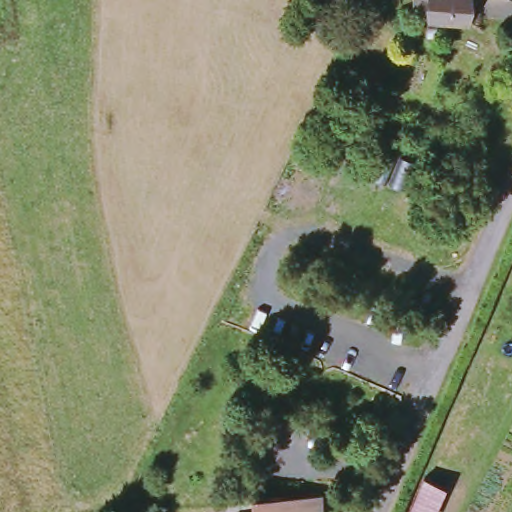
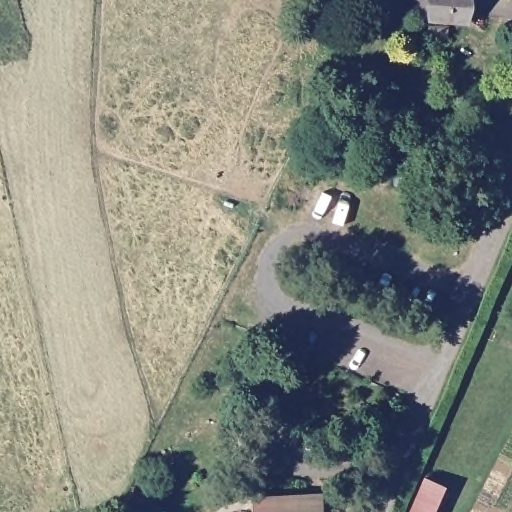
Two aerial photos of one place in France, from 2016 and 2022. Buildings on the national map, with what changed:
unchanged [(412,16),(414,0),(478,0),(475,25),(412,16)]
unchanged [(252,492),(316,482),(321,512),(255,512),(252,492)]

